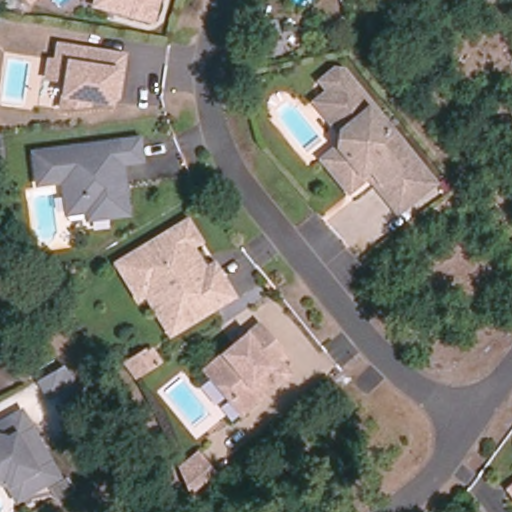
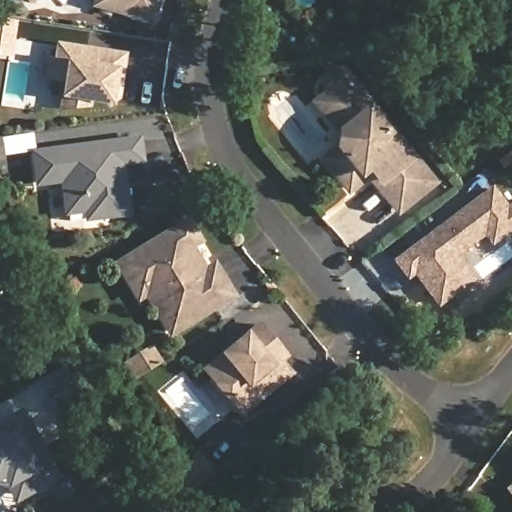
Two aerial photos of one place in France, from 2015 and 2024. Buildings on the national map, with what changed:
unchanged [(29,2),(27,0),(31,0),(29,2)]
unchanged [(99,0),(159,0),(154,16),(121,7),(99,1),(99,0)]
unchanged [(114,95),(108,100),(86,96),(85,102),(59,105),(62,85),(63,77),(51,76),(45,75),(47,57),(54,57),(56,42),(107,51),(121,52),(118,70),(116,82),(114,95)]
unchanged [(345,187),(332,172),(322,159),(337,147),(339,132),(314,102),(319,97),(327,91),(319,81),(330,72),(337,72),(427,181),(427,182),(394,208),(374,183),(365,172),(345,187)]
unchanged [(63,175),(48,177),(38,179),(34,150),(93,142),(137,136),(140,155),(120,158),(121,168),(123,179),(126,202),(127,209),(115,210),(88,214),(87,205),(68,208),(66,192),(63,175)]
new [(507,205),(512,201),(512,232),(491,247),(484,238),(459,257),(476,281),(437,309),(414,277),(407,282),(392,261),(493,186),(507,205)]
unchanged [(141,296),(134,284),(121,264),(188,223),(198,240),(190,246),(201,264),(206,272),(215,267),(225,283),(232,295),(214,306),(173,331),(164,317),(148,291),(141,296)]
unchanged [(0,295),(0,282),(2,286),(6,291),(0,295)]
unchanged [(233,403),(207,372),(261,327),(276,344),(287,357),(282,362),(292,375),(262,400),(244,416),(233,403)]
new [(138,362),(151,355),(157,351),(164,362),(158,366),(137,380),(126,365),(136,358),(138,362)]
demolished [(63,376),(48,385),(39,391),(29,374),(50,362),(63,376)]
new [(61,403),(55,393),(45,400),(35,383),(57,371),(70,385),(78,393),(61,403)]
unchanged [(0,482),(0,422),(17,412),(54,475),(21,495),(14,498),(6,484),(0,482)]
unchanged [(193,492),(182,467),(191,460),(202,452),(205,456),(218,472),(193,492)]

